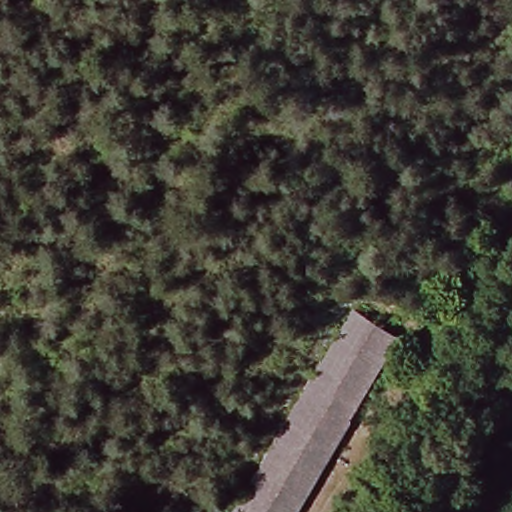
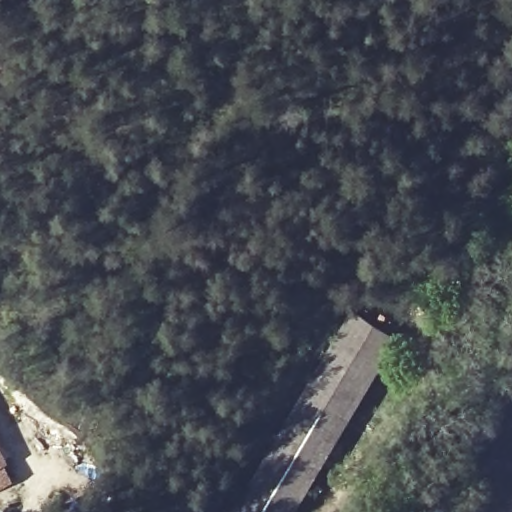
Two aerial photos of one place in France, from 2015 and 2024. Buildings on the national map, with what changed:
unchanged [(360,311),(405,341),(304,512),(236,512),(360,311)]
new [(2,465),(10,481),(0,486),(0,451),(6,464),(2,465)]

